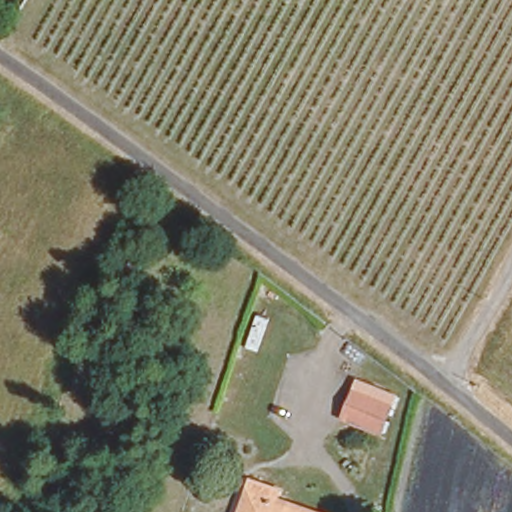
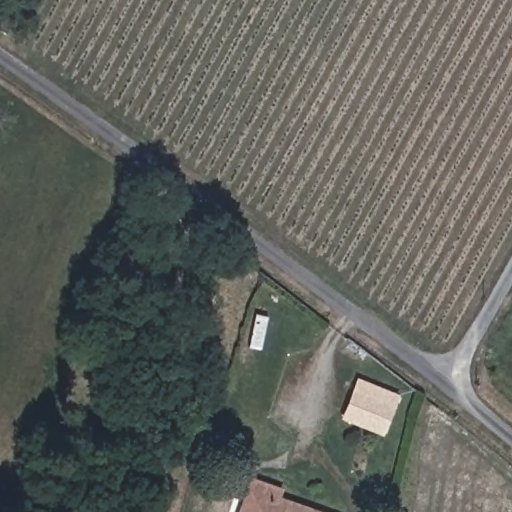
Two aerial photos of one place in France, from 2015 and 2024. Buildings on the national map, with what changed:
unchanged [(374,439),(339,423),(355,384),(390,399),(374,439)]
unchanged [(325,512),(230,512),(243,480),(325,512)]

